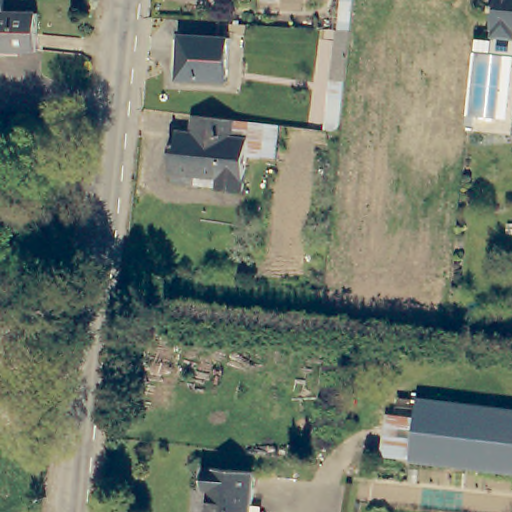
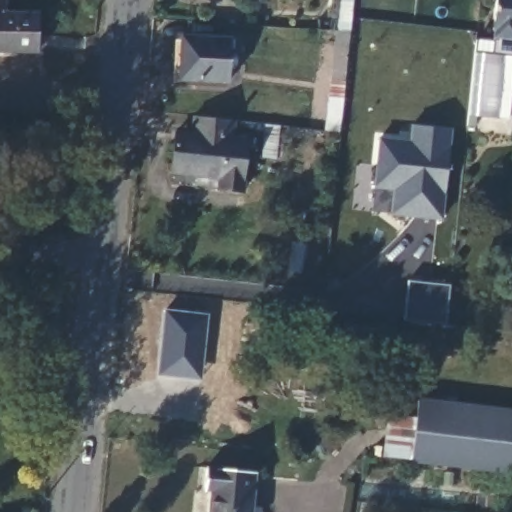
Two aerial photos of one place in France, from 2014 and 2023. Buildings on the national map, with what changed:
unchanged [(41,12),(40,51),(0,50),(0,0),(7,0),(7,11),(41,12)]
unchanged [(335,132),(320,131),(338,0),(350,0),(335,132)]
unchanged [(495,0),(512,0),(512,49),(496,48),(499,26),(491,26),(495,0)]
unchanged [(222,80),(176,79),(176,35),(224,36),(222,80)]
unchanged [(189,171),(164,170),(166,130),(185,132),(185,115),(216,118),(215,135),(230,136),(227,187),(209,186),(187,184),(189,171)]
unchanged [(216,118),(278,125),(275,161),(250,159),(247,190),(227,187),(230,136),(215,135),(216,118)]
new [(441,218),(392,212),(395,187),(375,185),(380,136),(411,140),(413,124),(450,128),(441,218)]
new [(408,279),(450,283),(445,322),(403,318),(408,279)]
unchanged [(410,465),(411,459),(418,402),(512,411),(512,475),(410,465)]
unchanged [(213,512),(215,490),(207,489),(208,472),(254,476),(252,512),(213,512)]

